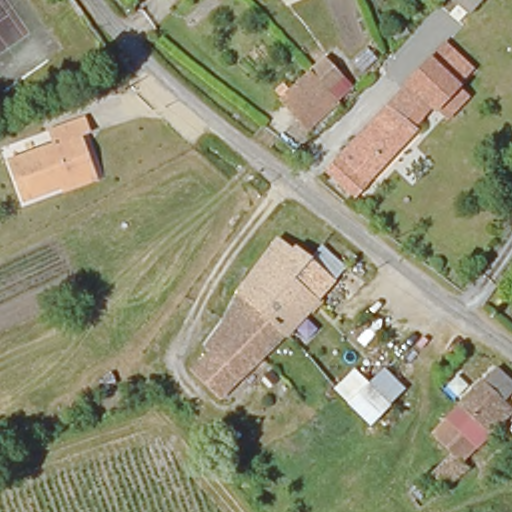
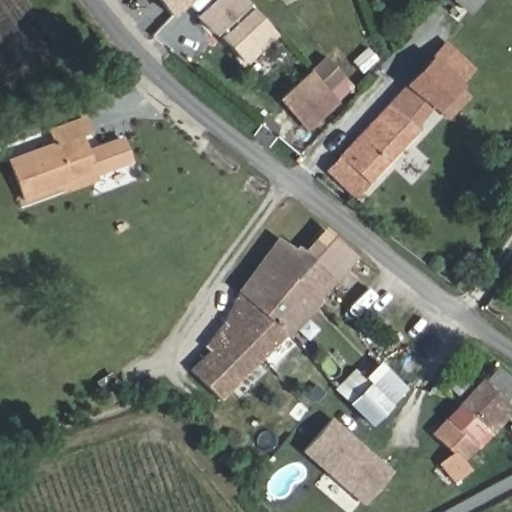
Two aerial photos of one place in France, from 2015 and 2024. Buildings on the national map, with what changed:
new [(167,17),(155,0),(188,0),(187,1),(167,17)]
new [(244,65),(197,15),(213,0),(243,0),(277,36),(244,65)]
unchanged [(484,0),(471,16),(452,0),(484,0)]
unchanged [(443,40),(475,68),(462,84),(471,94),(449,120),(436,111),(428,110),(402,86),(430,55),(443,40)]
unchanged [(311,121),(289,100),(319,62),(340,86),(311,121)]
unchanged [(363,190),(347,175),(359,161),(346,150),(402,86),(428,110),(363,190)]
unchanged [(26,200),(11,163),(57,147),(52,129),(85,118),(107,173),(26,200)]
unchanged [(241,284),(251,270),(275,244),(284,234),(302,251),(293,260),(302,270),(325,290),(292,328),(241,284)]
unchanged [(325,290),(302,270),(325,241),(348,264),(325,290)]
unchanged [(232,299),(241,284),(292,328),(265,360),(226,320),(232,299)]
unchanged [(265,360),(227,402),(197,372),(219,352),(209,339),(226,320),(265,360)]
unchanged [(385,365),(406,390),(371,427),(344,403),(385,365)]
unchanged [(512,398),(509,401),(512,406),(512,417),(493,435),(460,404),(498,366),(512,382),(512,398)]
unchanged [(460,465),(447,453),(430,436),(460,406),(490,437),(460,465)]
new [(391,469),(363,505),(300,451),(331,417),(391,469)]
demolished [(427,470),(443,452),(457,465),(468,476),(451,493),(427,470)]

